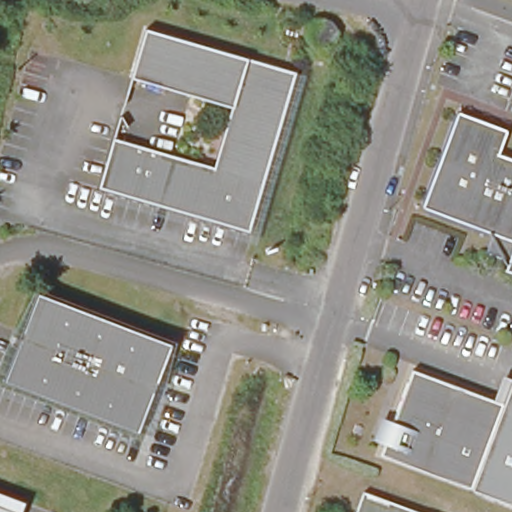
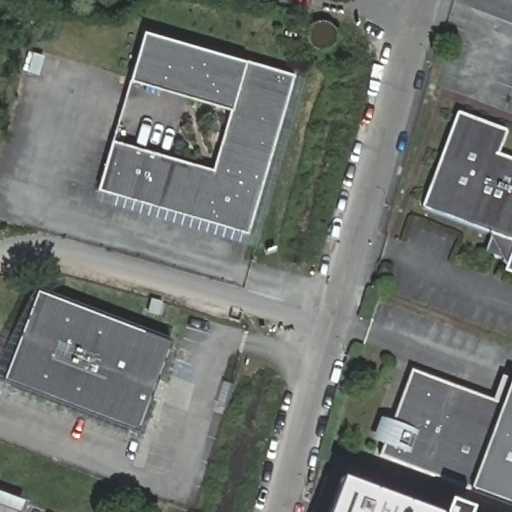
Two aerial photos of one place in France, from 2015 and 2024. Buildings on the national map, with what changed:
unchanged [(309,30),(311,24),(317,20),(322,17),(326,18),(333,20),(336,25),(338,30),(338,36),(337,40),(334,45),(331,46),(326,47),(322,48),(318,47),(311,42),(309,36),(309,30)]
unchanged [(293,71),(245,232),(96,187),(111,139),(213,168),(232,107),(129,77),(143,29),(293,71)]
unchanged [(485,234),(418,206),(455,112),(501,128),(494,155),(512,162),(512,273),(504,270),(485,234)]
unchanged [(134,431),(0,382),(0,376),(33,292),(170,343),(134,431)]
unchanged [(411,370),(501,403),(469,487),(378,456),(411,370)]
unchanged [(511,377),(512,378),(512,503),(469,487),(501,403),(511,377)]
new [(329,512),(342,478),(433,512),(329,512)]
demolished [(406,512),(352,512),(359,495),(406,512)]
new [(469,510),(468,512),(445,512),(449,503),(469,510)]

